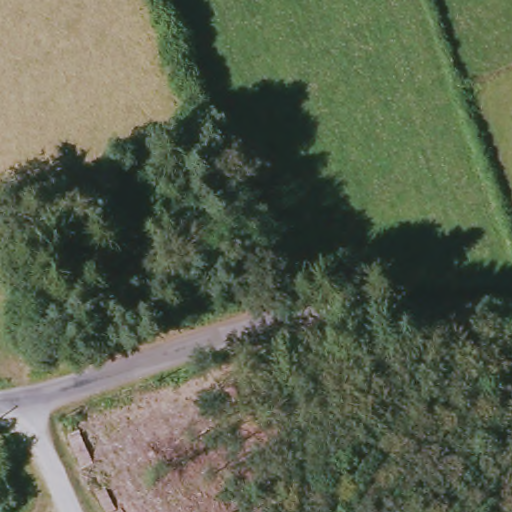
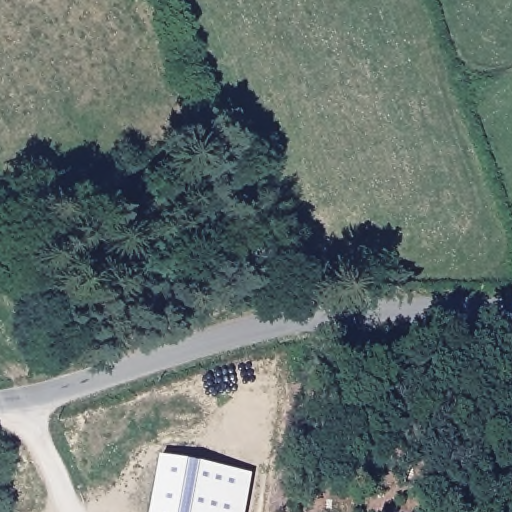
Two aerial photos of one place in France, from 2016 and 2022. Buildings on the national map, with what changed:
new [(243,512),(148,512),(157,460),(250,476),(243,512)]

